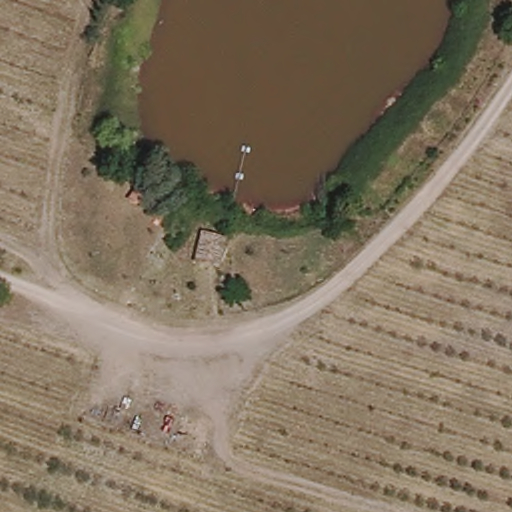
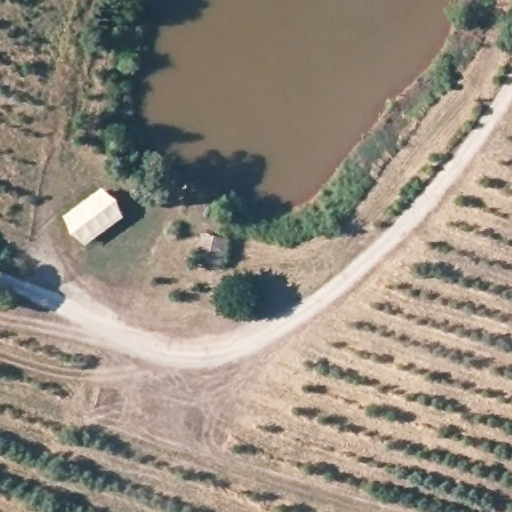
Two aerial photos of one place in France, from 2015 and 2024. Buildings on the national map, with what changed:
new [(102,189),(122,217),(84,245),(63,216),(102,189)]
unchanged [(225,237),(216,266),(196,259),(203,233),(225,237)]

